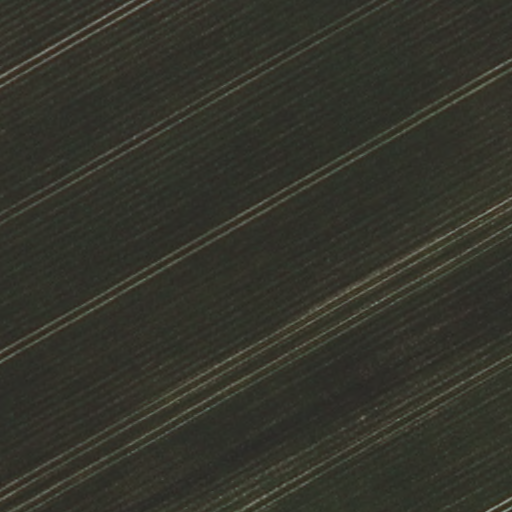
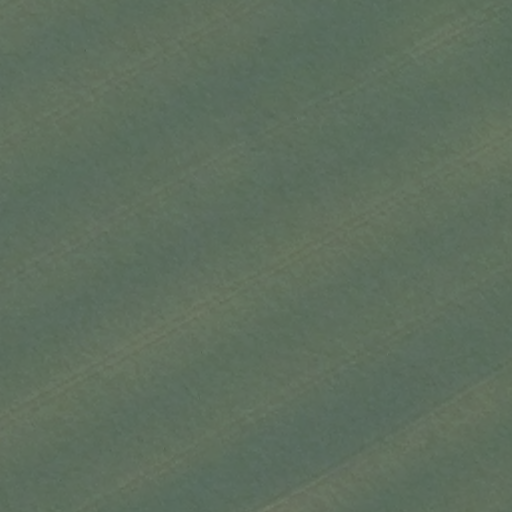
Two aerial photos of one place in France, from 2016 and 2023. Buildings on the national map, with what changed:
[]

